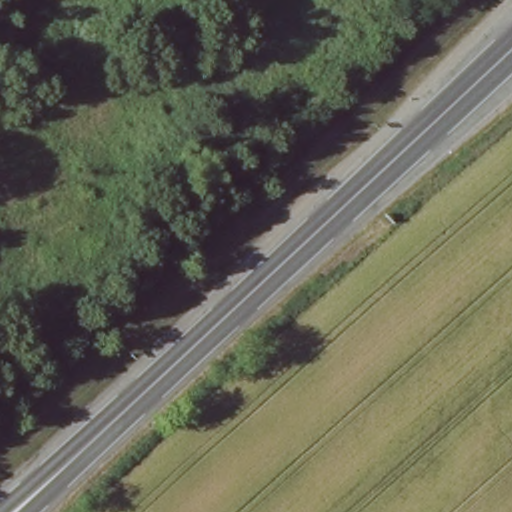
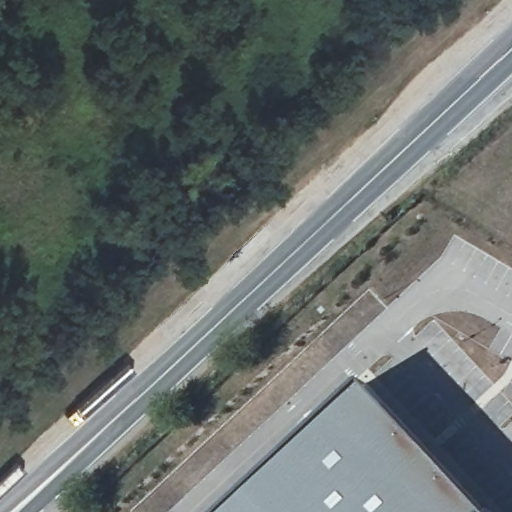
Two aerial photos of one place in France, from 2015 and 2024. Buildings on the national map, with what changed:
new [(474,512),(208,512),(348,380),(474,512)]

